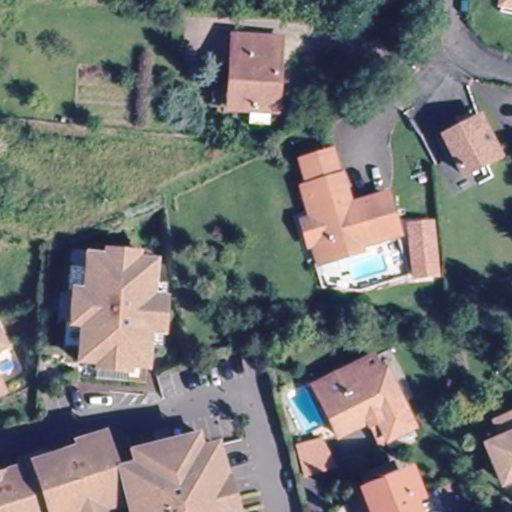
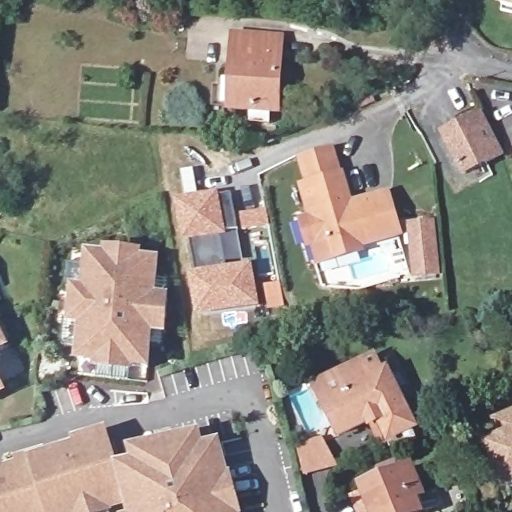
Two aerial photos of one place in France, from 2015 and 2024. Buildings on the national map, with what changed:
unchanged [(510,3),(511,0),(512,0),(512,4),(510,3)]
unchanged [(231,117),(223,49),(266,44),(273,112),(231,117)]
unchanged [(456,172),(453,165),(439,136),(491,111),(510,154),(480,168),(459,178),(456,172)]
unchanged [(315,220),(306,190),(309,185),(302,161),(330,152),(338,176),(342,175),(347,191),(343,192),(348,207),(387,195),(399,233),(360,245),(362,252),(337,260),(331,241),(322,243),(315,220)]
new [(196,320),(187,275),(196,273),(190,244),(182,246),(174,200),(218,192),(219,197),(231,194),(237,229),(225,232),(226,237),(220,238),(226,268),(253,264),(261,308),(196,320)]
unchanged [(438,220),(443,273),(414,276),(409,220),(438,220)]
unchanged [(80,343),(76,343),(64,342),(66,319),(72,320),(74,287),(69,287),(72,245),(75,245),(89,246),(88,251),(154,258),(152,278),(166,279),(164,295),(161,328),(160,341),(146,340),(144,363),(143,371),(142,375),(130,374),(78,370),(79,356),(80,343)]
unchanged [(368,432),(345,444),(339,447),(322,416),(314,400),(351,380),(365,372),(378,396),(388,390),(413,436),(389,449),(380,454),(368,432)]
unchanged [(484,455),(491,452),(498,449),(491,434),(512,425),(512,485),(507,487),(500,490),(484,455)]
unchanged [(337,465),(308,473),(298,444),(322,437),(337,465)]
unchanged [(11,478),(27,472),(24,466),(39,463),(40,462),(48,459),(50,464),(66,458),(68,465),(86,458),(84,452),(111,442),(123,474),(223,446),(232,479),(233,478),(242,512),(137,512),(133,500),(111,508),(113,512),(0,512),(0,490),(13,485),(11,478)]
unchanged [(384,475),(389,488),(404,482),(413,506),(410,508),(412,512),(361,512),(351,488),(384,475)]

